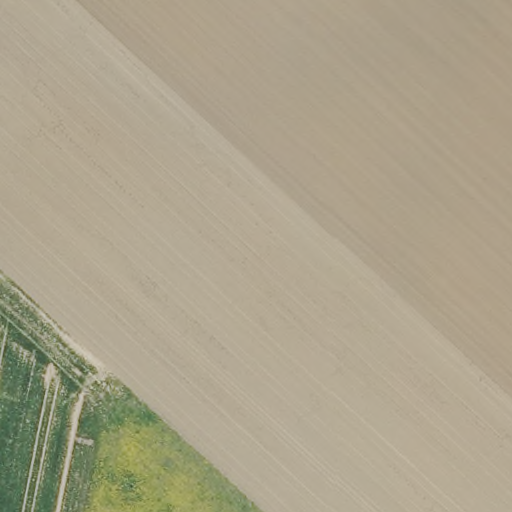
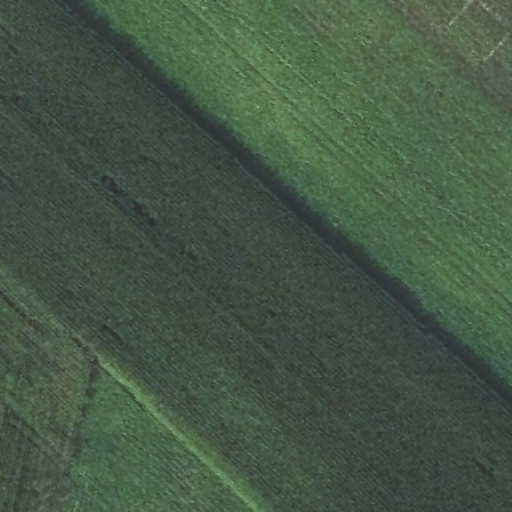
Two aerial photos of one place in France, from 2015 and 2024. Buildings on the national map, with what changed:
[]

